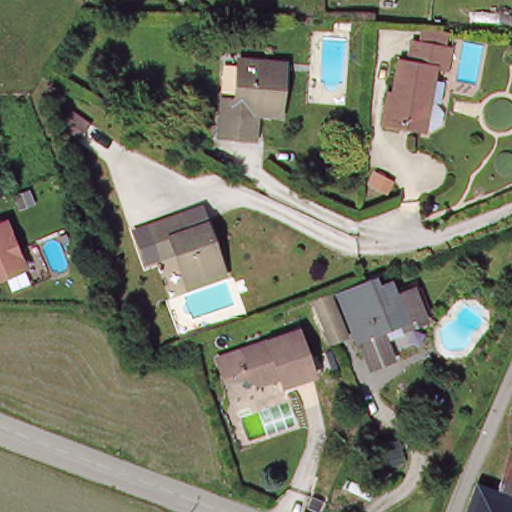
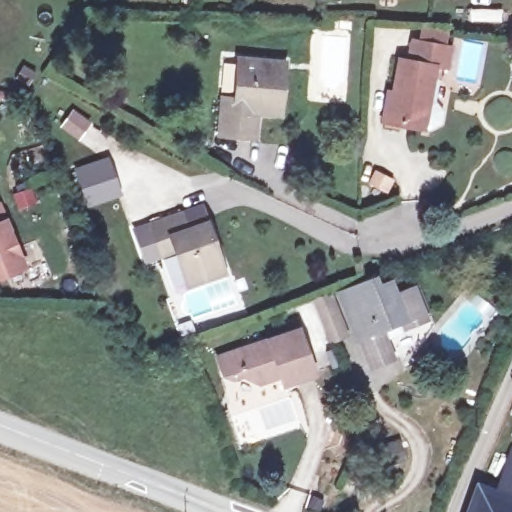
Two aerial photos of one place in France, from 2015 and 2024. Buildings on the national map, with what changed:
unchanged [(439,95),(445,101),(442,116),(430,124),(399,119),(398,124),(382,121),(385,86),(392,87),(395,55),(409,57),(412,38),(450,44),(447,66),(435,64),(430,94),(439,95)]
unchanged [(260,112),(259,137),(224,134),(227,95),(239,96),(242,55),(270,57),(286,58),(285,67),(282,113),(260,112)]
new [(72,107),(91,121),(79,140),(60,126),(72,107)]
new [(109,155),(123,195),(85,207),(72,167),(109,155)]
unchanged [(179,221),(196,215),(202,232),(222,281),(185,293),(172,260),(159,264),(154,249),(147,232),(179,221)]
unchanged [(29,268),(0,280),(0,225),(9,222),(29,268)]
unchanged [(425,319),(404,327),(401,335),(384,342),(390,359),(368,367),(339,291),(372,278),(377,290),(389,285),(392,295),(413,287),(425,319)]
unchanged [(328,295),(345,337),(329,342),(312,301),(328,295)]
unchanged [(300,327),(317,372),(286,382),(282,373),(260,382),(245,373),(235,377),(224,372),(219,357),(300,327)]
unchanged [(510,448),(512,449),(512,512),(465,512),(475,486),(494,490),(510,448)]

